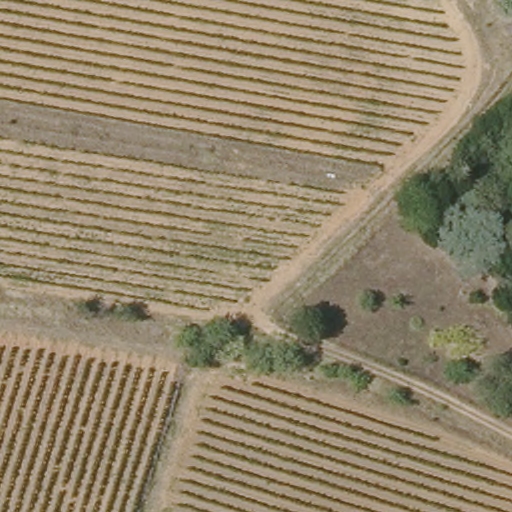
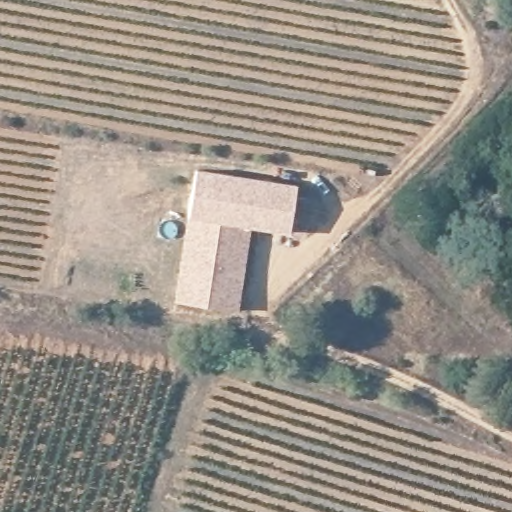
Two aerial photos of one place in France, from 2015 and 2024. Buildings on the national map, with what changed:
new [(195,167),(297,184),(290,233),(252,227),(239,313),(174,301),(195,167)]

